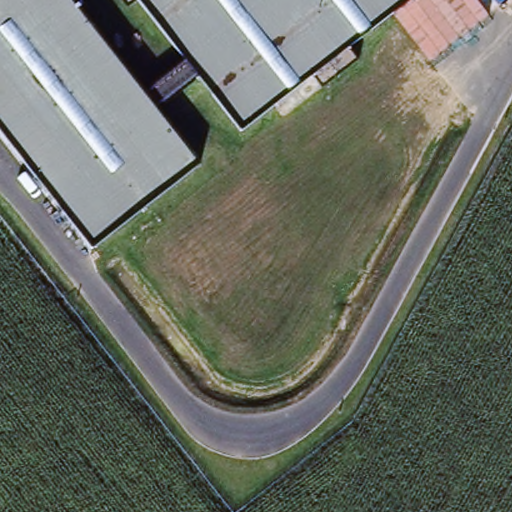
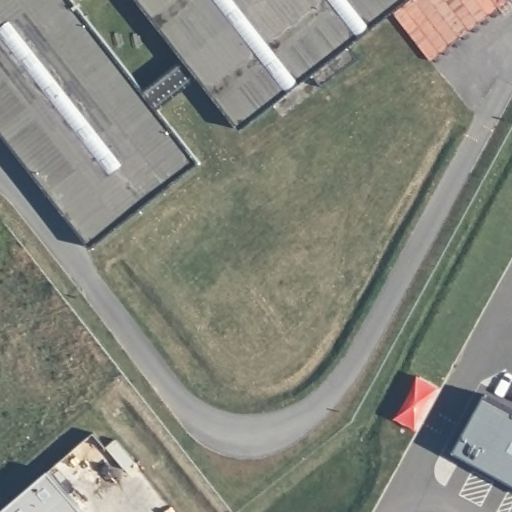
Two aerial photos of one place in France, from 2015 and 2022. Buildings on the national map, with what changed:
unchanged [(0,134),(0,0),(21,0),(165,186),(88,247),(0,134)]
unchanged [(21,0),(69,0),(198,160),(165,186),(21,0)]
unchanged [(352,56),(320,82),(309,70),(238,125),(143,7),(137,0),(397,0),(342,43),(352,56)]
new [(487,396),(512,411),(512,484),(453,452),(487,396)]
new [(92,438),(130,482),(95,512),(79,512),(48,476),(92,438)]
new [(48,476),(79,512),(7,512),(48,476)]

